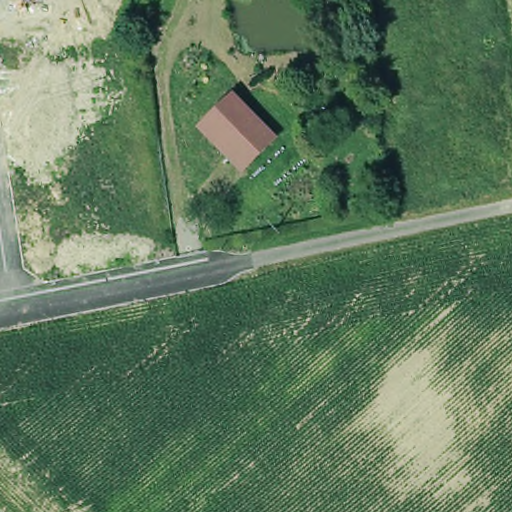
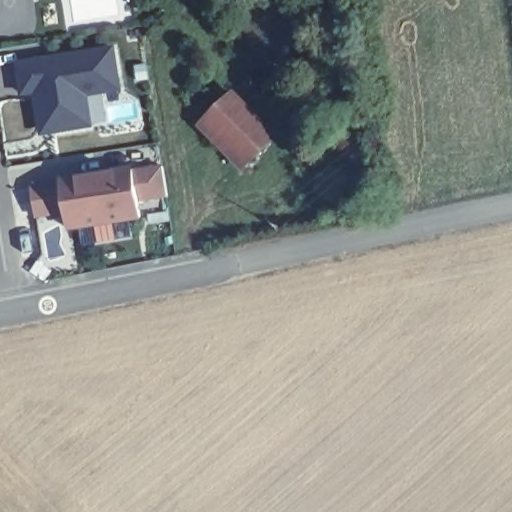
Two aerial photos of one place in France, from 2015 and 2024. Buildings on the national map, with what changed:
new [(113,52),(119,91),(86,99),(90,130),(36,138),(28,99),(19,99),(12,63),(113,52)]
unchanged [(280,135),(243,174),(198,121),(236,87),(280,135)]
new [(62,182),(134,171),(134,172),(164,167),(168,197),(138,202),(141,218),(70,229),(67,212),(37,217),(33,187),(62,183),(62,182)]

